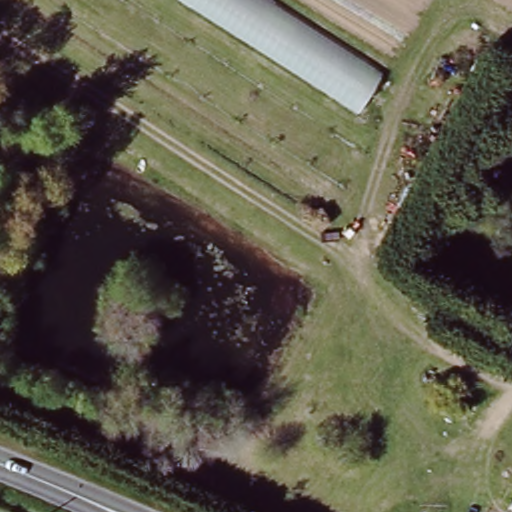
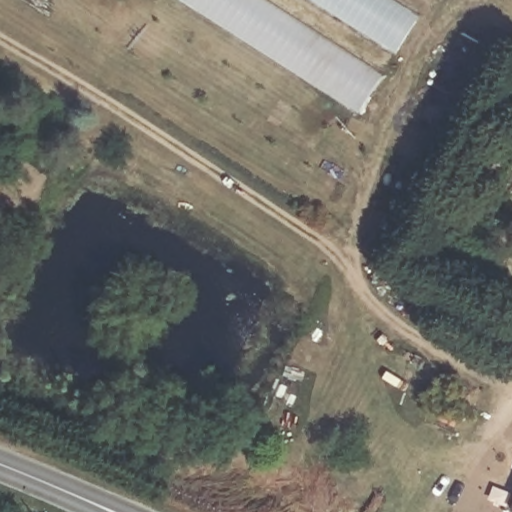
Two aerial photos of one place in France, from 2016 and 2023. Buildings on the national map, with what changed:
unchanged [(266,0),(381,74),(357,110),(184,0),(266,0)]
new [(310,0),(393,0),(420,16),(396,55),(310,0)]
unchanged [(512,503),(512,512),(508,512),(512,503)]

